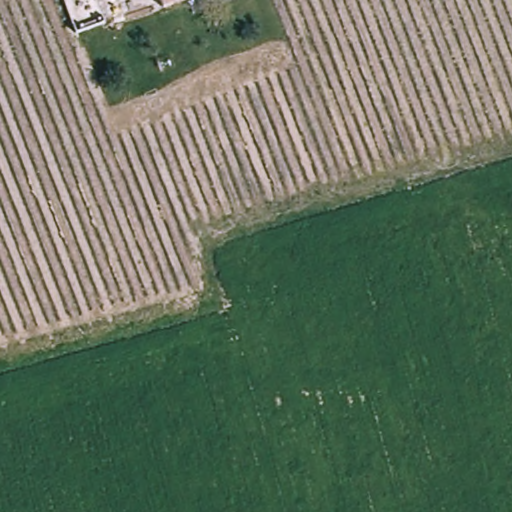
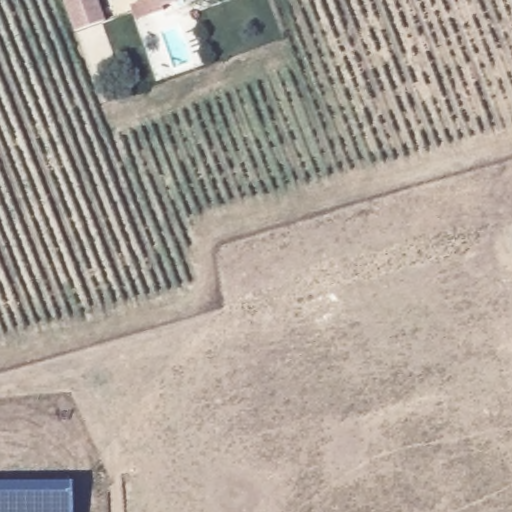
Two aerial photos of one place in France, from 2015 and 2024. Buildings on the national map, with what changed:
new [(63,0),(98,0),(106,21),(75,33),(63,0)]
new [(73,512),(0,512),(0,483),(73,483),(73,512)]

